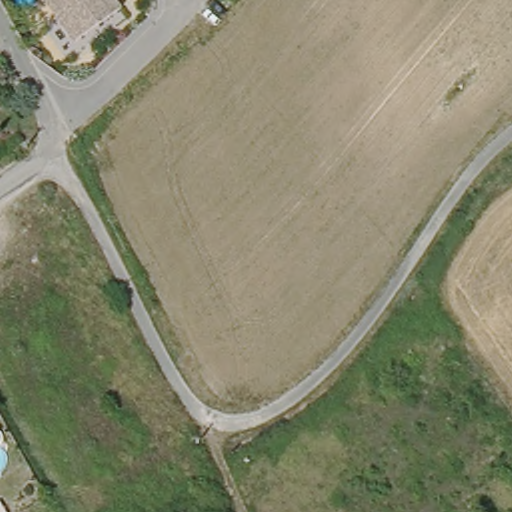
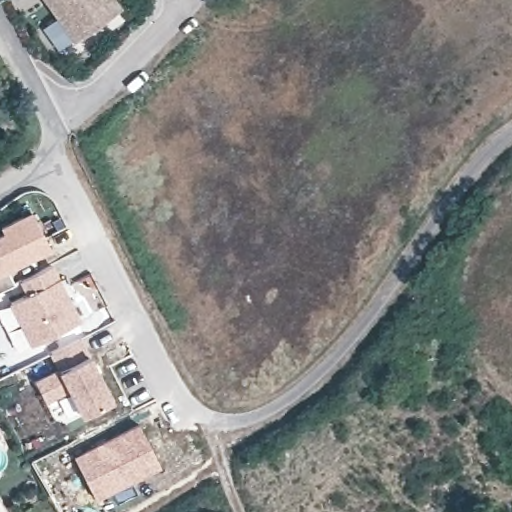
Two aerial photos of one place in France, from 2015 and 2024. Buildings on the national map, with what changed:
unchanged [(46,0),(112,0),(119,9),(72,43),(46,0)]
new [(2,227),(33,211),(52,250),(8,272),(14,283),(0,290),(0,234),(3,233),(2,227)]
new [(55,266),(81,322),(30,346),(9,304),(26,294),(20,282),(55,266)]
new [(83,338),(114,398),(81,416),(69,393),(48,402),(36,381),(59,371),(50,354),(83,338)]
new [(160,465),(97,499),(75,456),(138,423),(160,465)]

